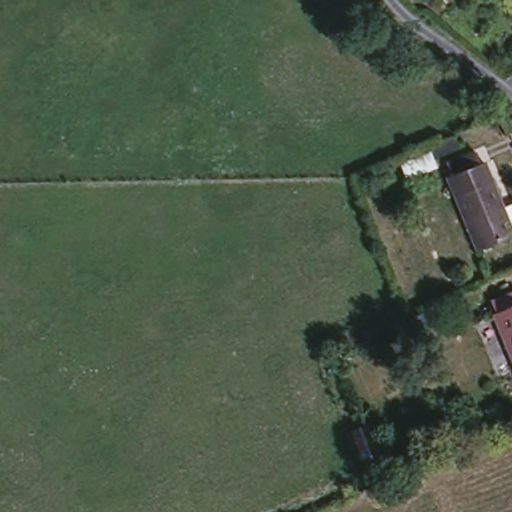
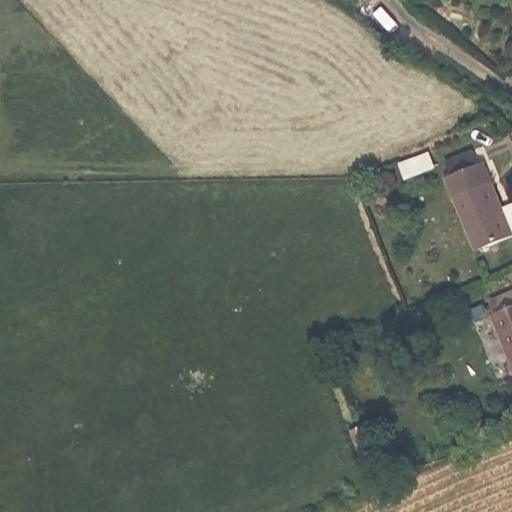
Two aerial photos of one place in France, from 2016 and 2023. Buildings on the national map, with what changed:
unchanged [(511,235),(474,250),(446,184),(451,181),(442,161),(469,150),(477,170),(482,169),(511,235)]
unchanged [(489,316),(512,306),(512,370),(489,316)]

